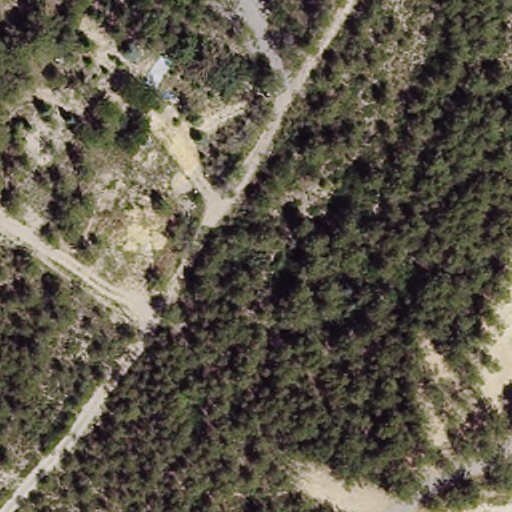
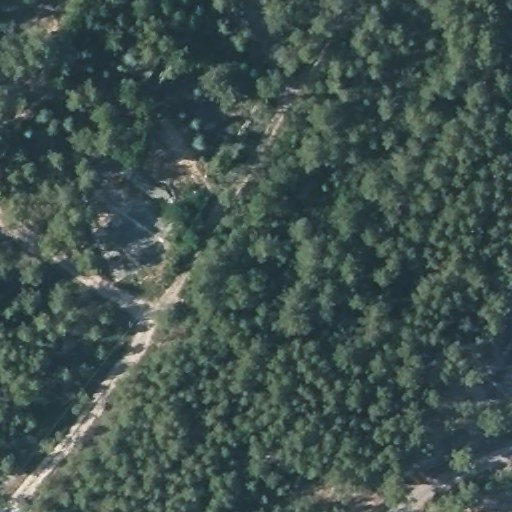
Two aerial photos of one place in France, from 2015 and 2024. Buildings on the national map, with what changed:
[]

